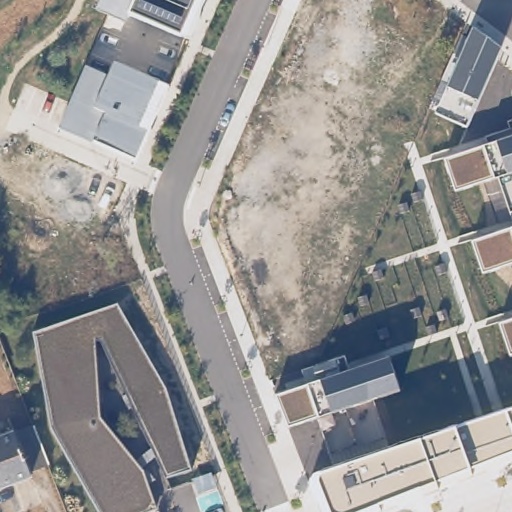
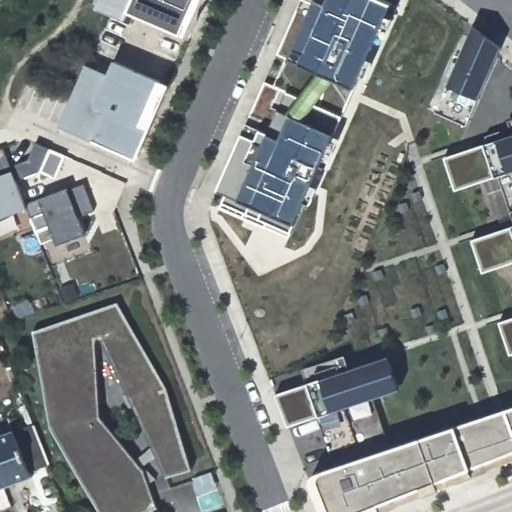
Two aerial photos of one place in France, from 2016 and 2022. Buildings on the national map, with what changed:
unchanged [(190,37),(130,12),(127,18),(96,5),(98,0),(206,0),(190,37)]
new [(223,192),(216,190),(240,132),(263,80),(272,84),(285,57),(276,54),(300,0),(387,0),(391,2),(353,87),(349,85),(333,132),(294,222),(290,221),(290,233),(219,206),(223,192)]
unchanged [(437,111),(473,26),(500,47),(467,125),(437,111)]
unchanged [(108,76),(115,59),(170,85),(137,159),(93,141),(60,126),(85,66),(108,76)]
unchanged [(454,192),(443,156),(489,142),(486,136),(510,126),(507,119),(512,118),(512,212),(499,176),(454,192)]
new [(25,209),(0,219),(0,148),(3,147),(10,164),(26,158),(33,140),(64,153),(54,178),(38,171),(16,177),(24,200),(38,197),(66,186),(83,182),(93,211),(78,215),(84,234),(56,244),(53,237),(40,244),(25,209)]
unchanged [(472,239),(512,226),(512,263),(481,273),(472,239)]
unchanged [(145,470),(146,468),(155,478),(149,482),(157,508),(147,512),(98,512),(47,428),(31,332),(116,302),(166,389),(191,471),(165,478),(155,456),(142,466),(144,469),(145,470)]
unchanged [(499,322),(512,318),(512,355),(509,356),(499,322)]
unchanged [(373,398),(392,447),(512,406),(512,460),(378,512),(322,512),(310,480),(312,474),(337,465),(319,417),(288,427),(277,393),(308,383),(302,370),(345,355),(352,370),(388,356),(400,390),(373,398)]
unchanged [(0,488),(0,436),(13,431),(14,432),(32,425),(47,463),(29,471),(31,476),(0,488)]

